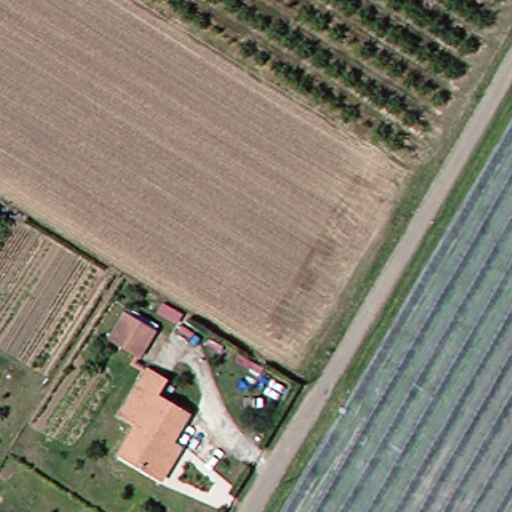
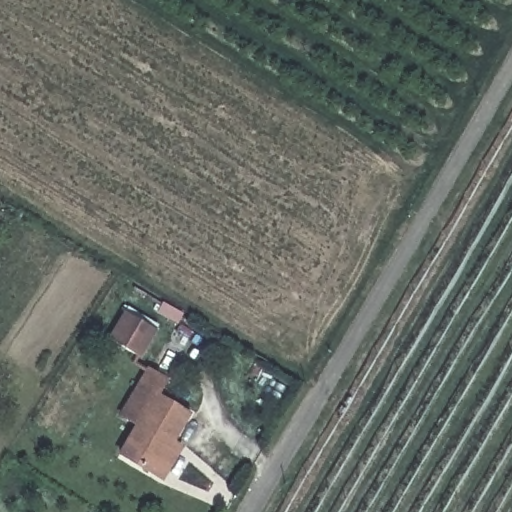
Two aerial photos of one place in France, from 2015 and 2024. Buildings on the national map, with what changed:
unchanged [(125,351),(142,323),(170,340),(154,368),(125,351)]
unchanged [(166,479),(157,475),(125,454),(142,425),(126,416),(154,371),(171,381),(162,396),(194,415),(176,442),(184,447),(166,479)]

